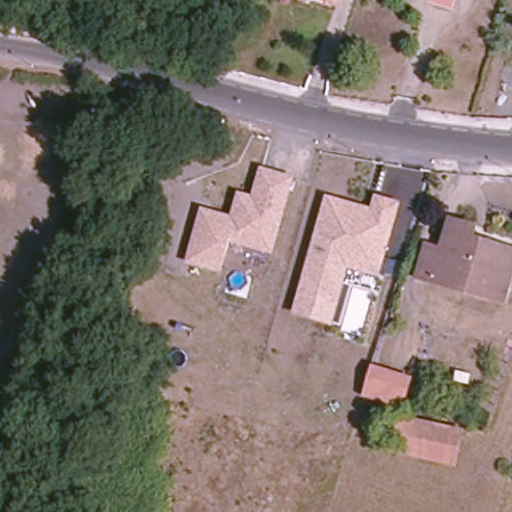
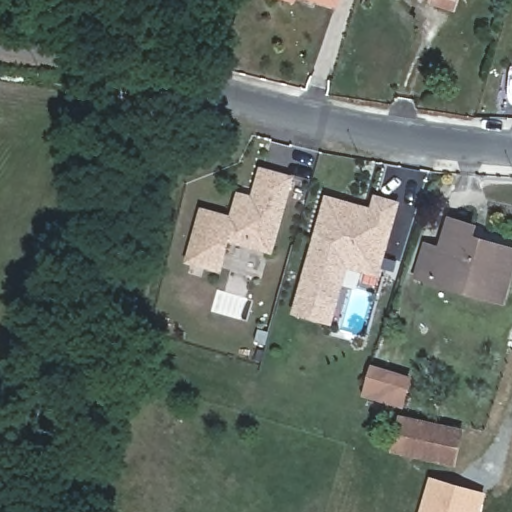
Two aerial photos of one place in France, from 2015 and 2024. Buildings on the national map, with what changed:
unchanged [(320,0),(334,0),(333,4),(320,0)]
unchanged [(431,3),(432,0),(454,0),(451,10),(431,3)]
unchanged [(296,175),(275,254),(231,245),(221,274),(184,266),(200,207),(230,214),(237,191),(252,194),(260,166),(296,175)]
unchanged [(372,193),(402,201),(381,277),(348,268),(332,327),(292,315),(326,194),(368,206),(372,193)]
unchanged [(431,244),(445,248),(455,216),(479,223),(476,236),(512,247),(512,276),(505,299),(422,273),(431,244)]
unchanged [(416,377),(407,405),(367,393),(376,365),(416,377)]
unchanged [(400,416),(465,431),(457,468),(391,455),(400,416)]
new [(488,493),(482,512),(421,512),(432,476),(488,493)]

